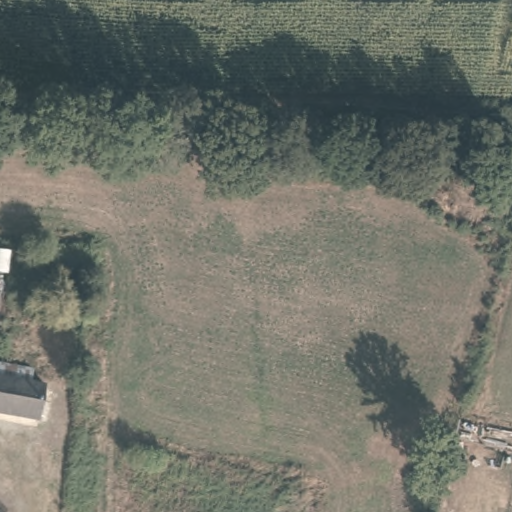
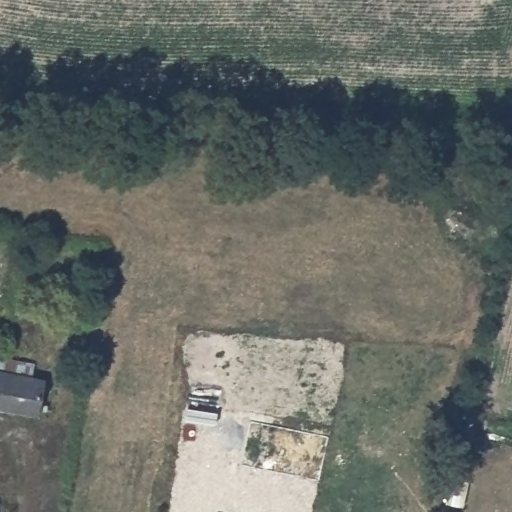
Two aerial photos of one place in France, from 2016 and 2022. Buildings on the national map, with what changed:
unchanged [(40,370),(38,381),(50,384),(44,417),(0,409),(0,363),(40,370)]

